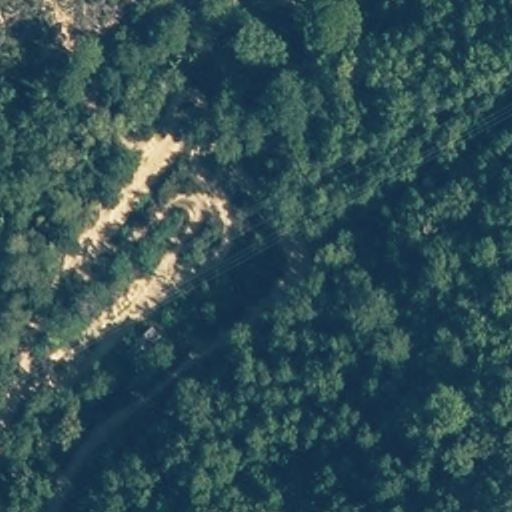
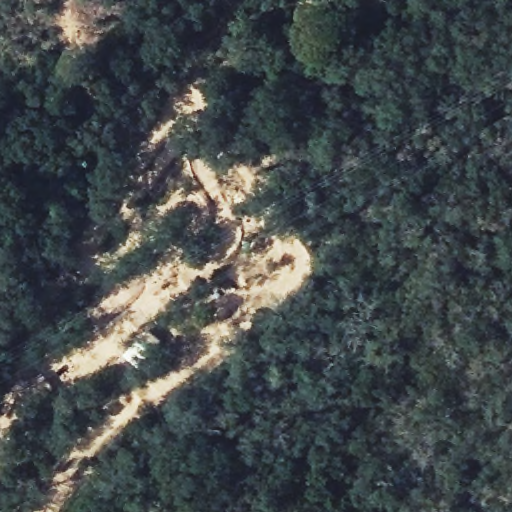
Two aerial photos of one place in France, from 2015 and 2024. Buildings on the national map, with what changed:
unchanged [(121,356),(149,328),(164,342),(135,368),(121,356)]

